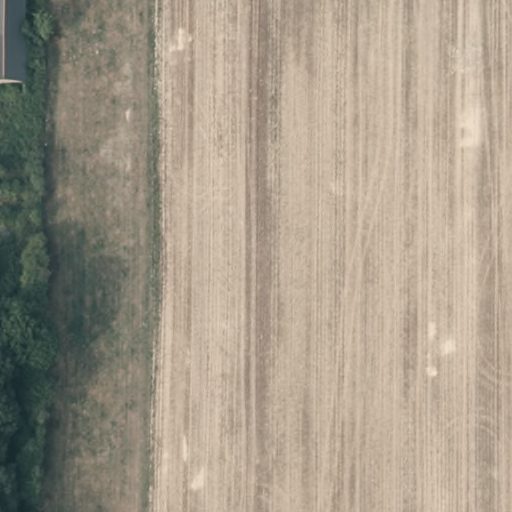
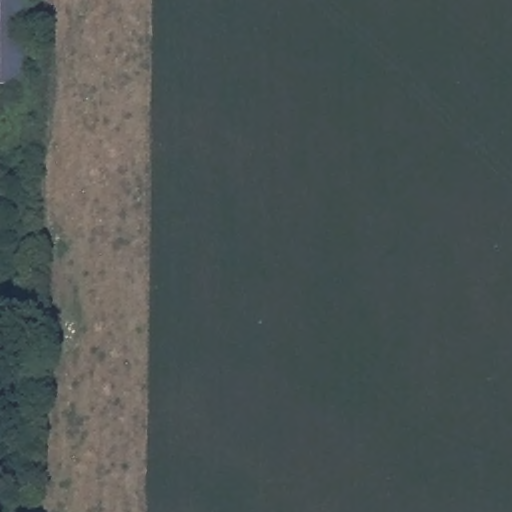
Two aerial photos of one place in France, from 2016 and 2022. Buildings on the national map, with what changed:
unchanged [(0,90),(0,0),(29,0),(28,89),(0,90)]

